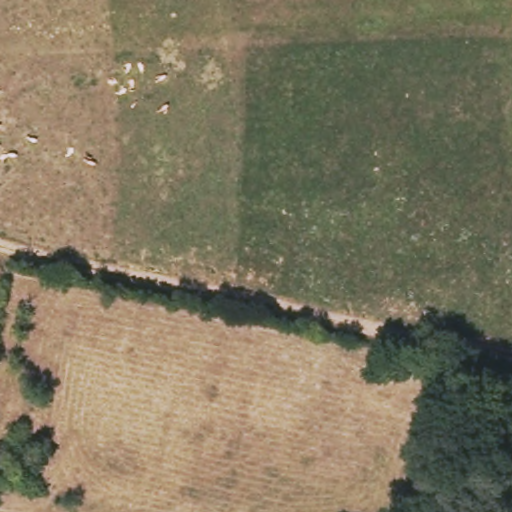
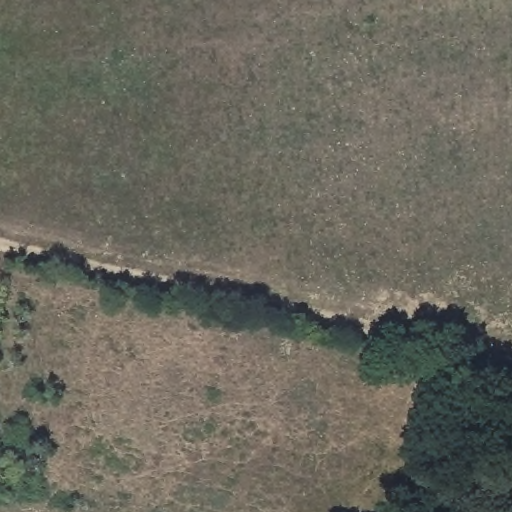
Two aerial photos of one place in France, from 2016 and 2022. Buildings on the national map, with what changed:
[]

